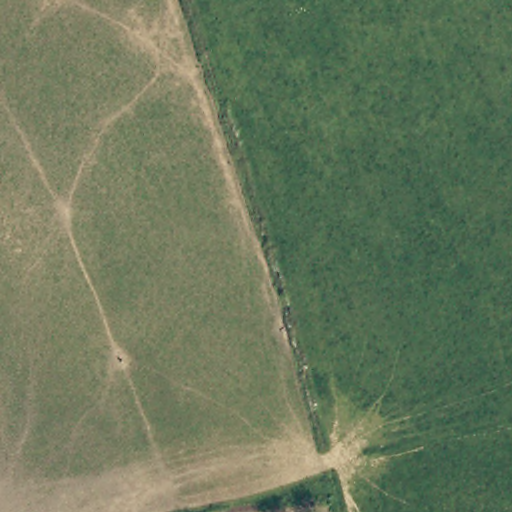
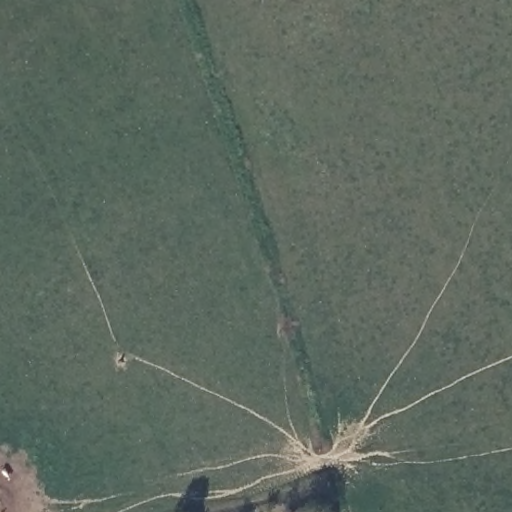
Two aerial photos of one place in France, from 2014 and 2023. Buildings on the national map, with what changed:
[]

